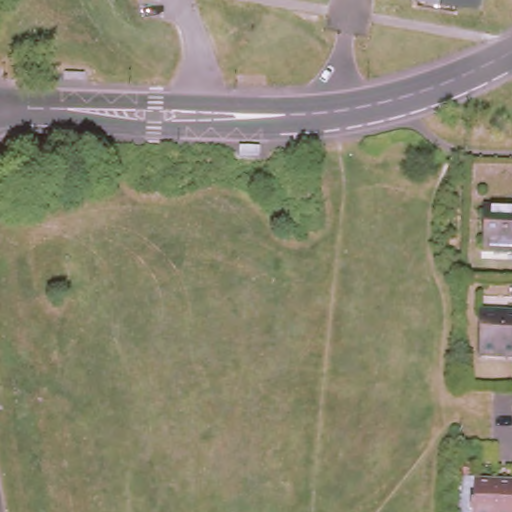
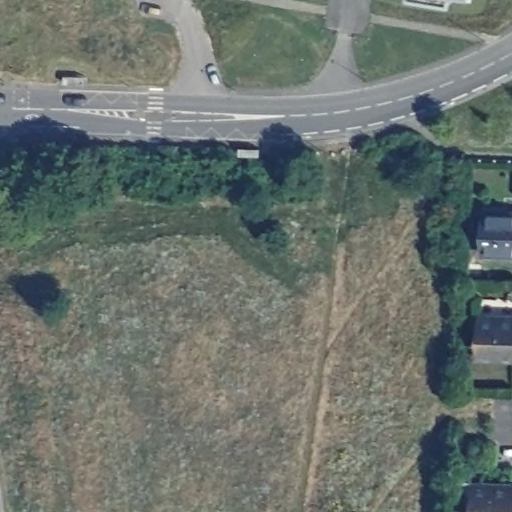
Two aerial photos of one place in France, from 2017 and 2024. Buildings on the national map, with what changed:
unchanged [(452,5),(424,0),(453,0),(452,5)]
unchanged [(477,246),(479,207),(512,209),(512,248),(477,246)]
unchanged [(479,312),(512,314),(512,353),(477,351),(479,312)]
unchanged [(512,484),(512,512),(460,512),(462,482),(512,484)]

